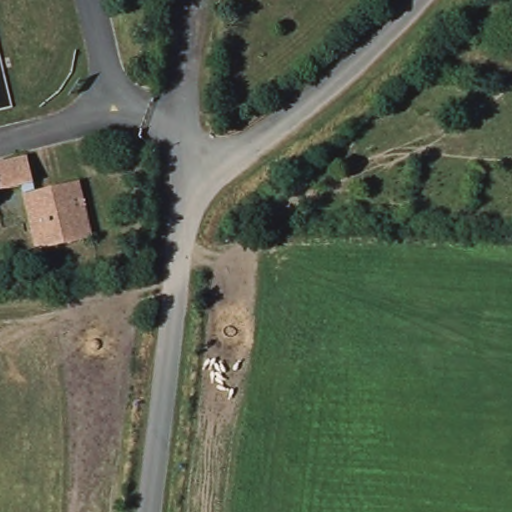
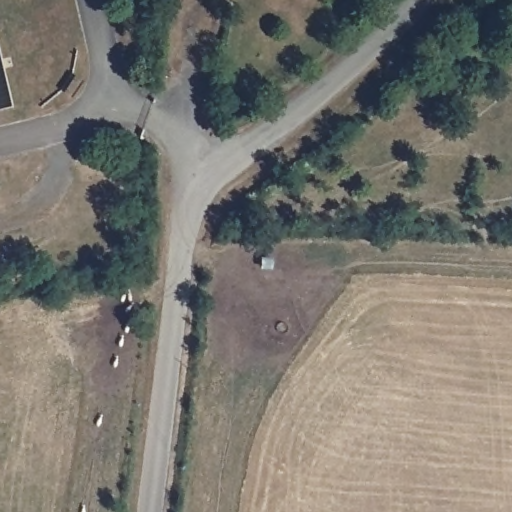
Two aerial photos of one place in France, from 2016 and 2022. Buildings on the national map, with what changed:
demolished [(0,176),(0,164),(32,156),(39,183),(4,191),(0,176)]
demolished [(29,200),(86,188),(97,240),(41,252),(29,200)]

